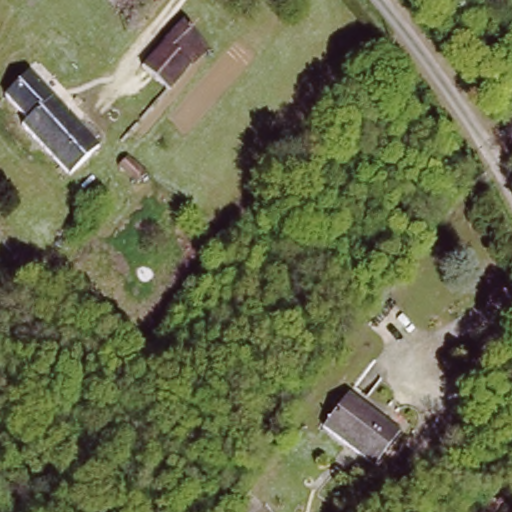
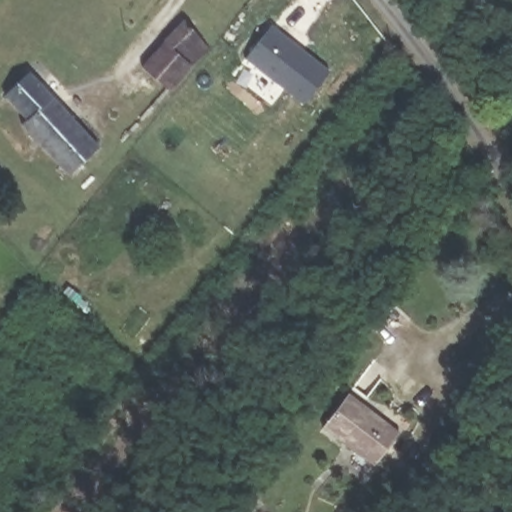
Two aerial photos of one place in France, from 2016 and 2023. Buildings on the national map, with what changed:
unchanged [(212,54),(190,72),(171,94),(145,70),(187,26),(198,39),(212,54)]
new [(247,59),(272,26),(332,72),(305,105),(247,59)]
unchanged [(77,175),(30,124),(33,120),(12,99),(37,75),(107,150),(77,175)]
unchanged [(142,179),(133,187),(116,169),(125,160),(142,179)]
unchanged [(409,439),(384,474),(333,436),(359,402),(409,439)]

